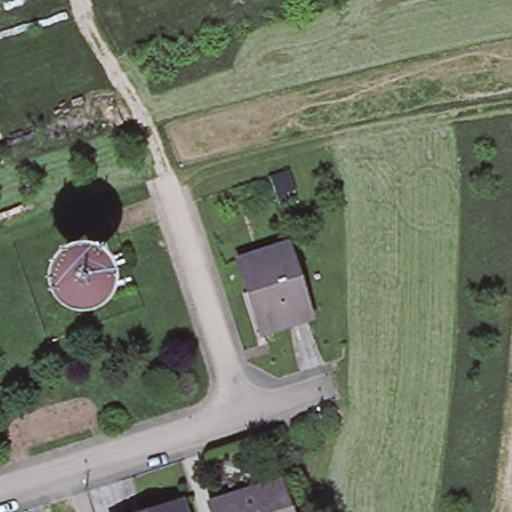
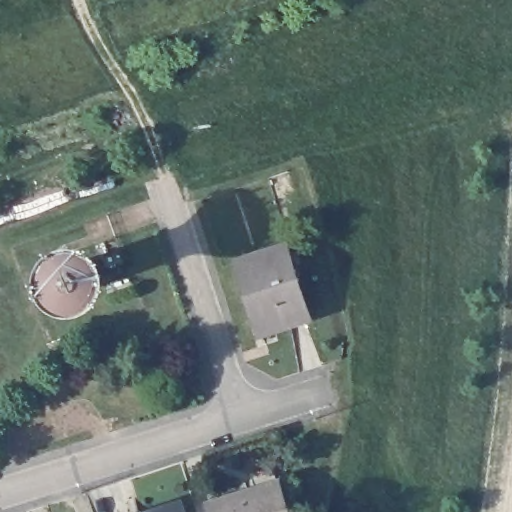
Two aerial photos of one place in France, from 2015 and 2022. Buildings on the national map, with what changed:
unchanged [(285,247),(308,318),(260,333),(238,261),(285,247)]
unchanged [(277,483),(287,512),(213,512),(210,505),(277,483)]
unchanged [(182,512),(154,512),(179,504),(182,512)]

